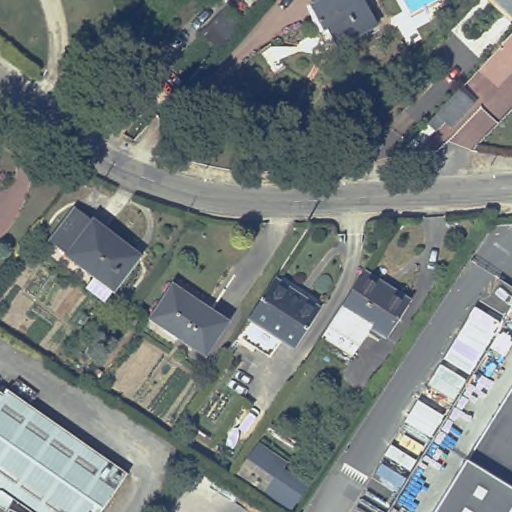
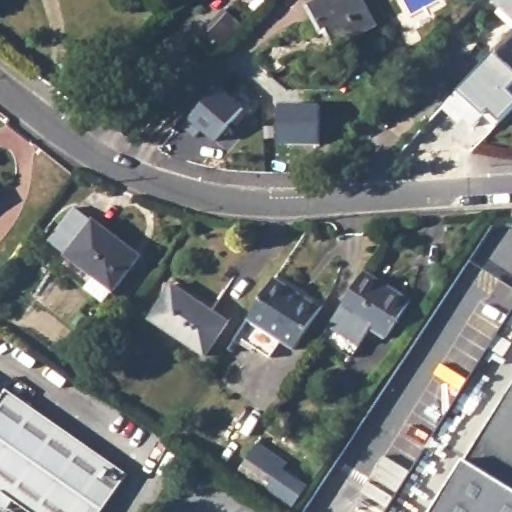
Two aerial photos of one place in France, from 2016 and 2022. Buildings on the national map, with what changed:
unchanged [(316,0),(362,0),(376,29),(337,49),(327,30),(320,33),(305,6),(316,0)]
unchanged [(512,18),(493,0),(512,0),(512,18)]
unchanged [(227,11),(238,21),(222,40),(210,29),(227,11)]
unchanged [(456,125),(447,118),(439,127),(432,120),(443,108),(465,84),(479,98),(456,125)]
new [(216,88),(241,109),(212,142),(200,131),(193,139),(181,128),(216,88)]
new [(276,104),(316,105),(316,145),(276,144),(276,104)]
unchanged [(66,255),(69,251),(50,238),(75,207),(92,220),(94,217),(143,255),(116,291),(66,255)]
unchanged [(421,294),(395,335),(377,324),(361,350),(329,329),(372,262),(421,294)]
unchanged [(324,305),(297,346),(283,337),(272,354),(241,333),(278,274),(324,305)]
unchanged [(149,317),(172,282),(231,320),(207,355),(149,317)]
unchanged [(466,455),(512,377),(512,497),(459,467),(466,455)]
unchanged [(7,388),(129,471),(101,512),(33,512),(1,491),(0,491),(0,391),(4,393),(7,388)]
unchanged [(291,512),(237,477),(265,432),(317,467),(292,512),(291,512)]
unchanged [(466,455),(459,467),(512,497),(512,512),(385,512),(433,434),(466,455)]

